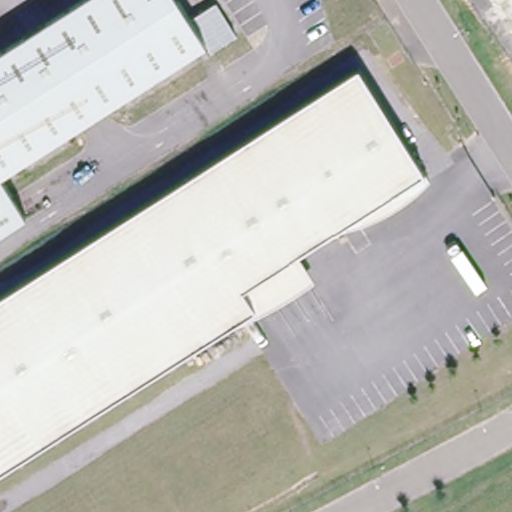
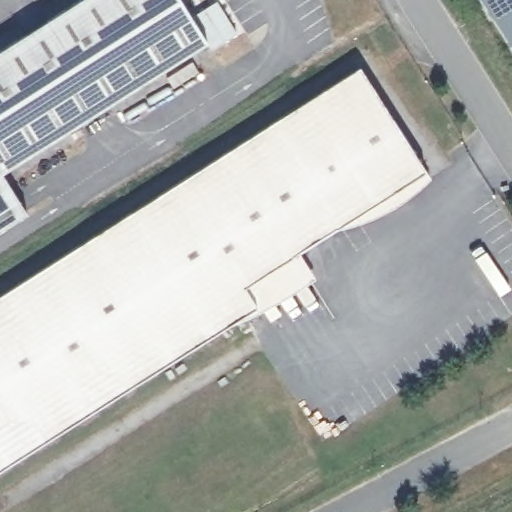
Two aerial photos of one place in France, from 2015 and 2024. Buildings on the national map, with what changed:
unchanged [(175,0),(190,25),(216,10),(231,35),(206,50),(202,42),(0,166),(0,57),(91,0),(175,0)]
new [(480,0),(512,0),(512,50),(480,0)]
unchanged [(432,183),(365,225),(361,218),(247,290),(259,310),(0,471),(0,297),(363,70),(432,183)]
unchanged [(0,235),(0,179),(25,220),(0,235)]

